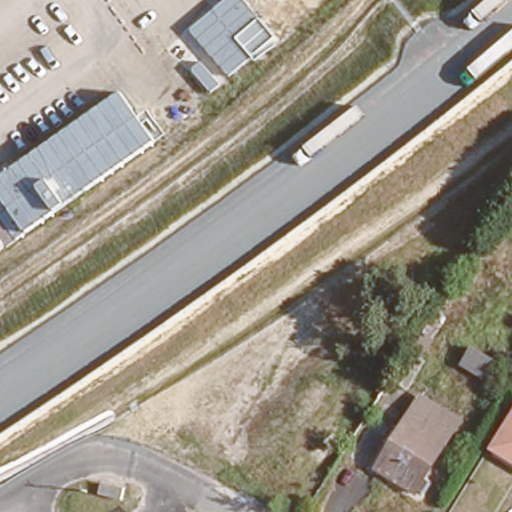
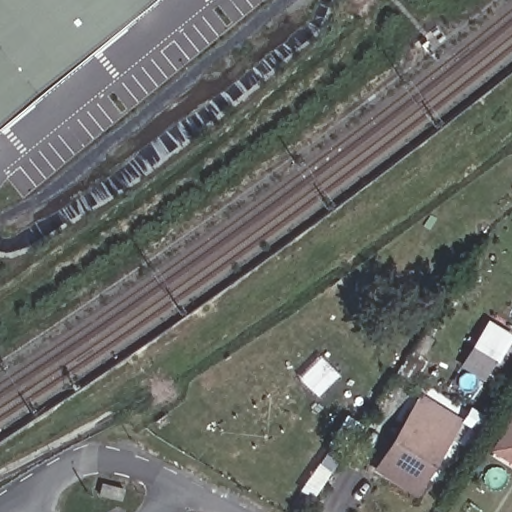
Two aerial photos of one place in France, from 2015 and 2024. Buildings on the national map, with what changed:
new [(0,134),(0,0),(160,0),(0,134)]
demolished [(0,180),(121,93),(158,144),(0,254),(0,180)]
new [(475,349),(496,362),(485,379),(464,366),(475,349)]
unchanged [(463,424),(416,501),(371,473),(419,396),(463,424)]
unchanged [(495,441),(512,412),(512,452),(495,441)]
unchanged [(109,481),(119,484),(124,485),(120,503),(104,500),(104,498),(107,481),(109,481)]

